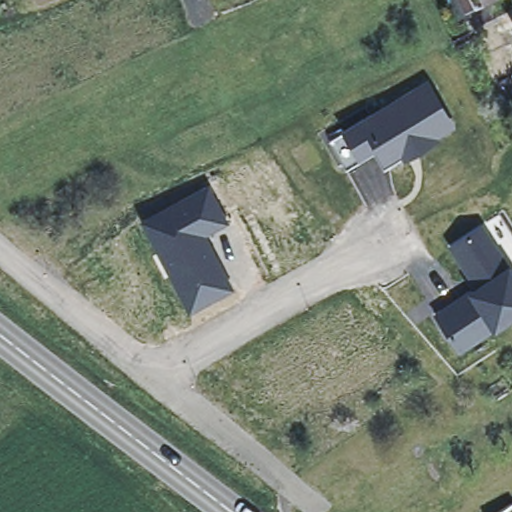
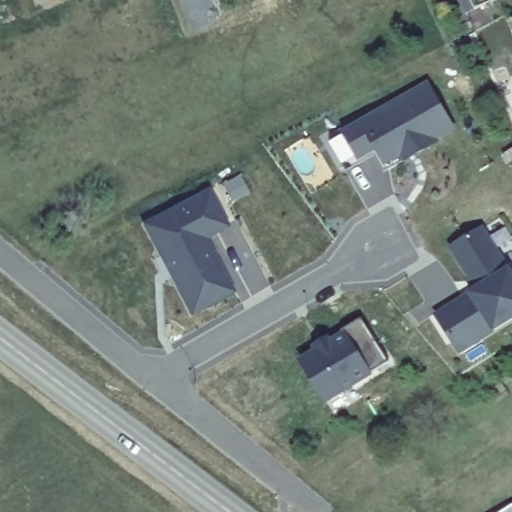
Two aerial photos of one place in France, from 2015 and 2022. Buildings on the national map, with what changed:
unchanged [(490,5),(469,15),(462,0),(500,0),(490,5)]
unchanged [(429,81),(456,130),(437,141),(440,144),(404,163),(401,159),(385,169),(377,153),(358,163),(341,133),(429,81)]
unchanged [(188,312),(139,219),(208,184),(229,226),(205,239),(231,290),(188,312)]
unchanged [(481,222),(509,267),(512,272),(512,324),(493,335),(459,355),(432,316),(472,287),(446,247),(481,222)]
new [(389,363),(372,373),(375,375),(327,404),(296,361),(314,351),(310,347),(327,336),(329,340),(342,332),(341,330),(361,318),(389,363)]

